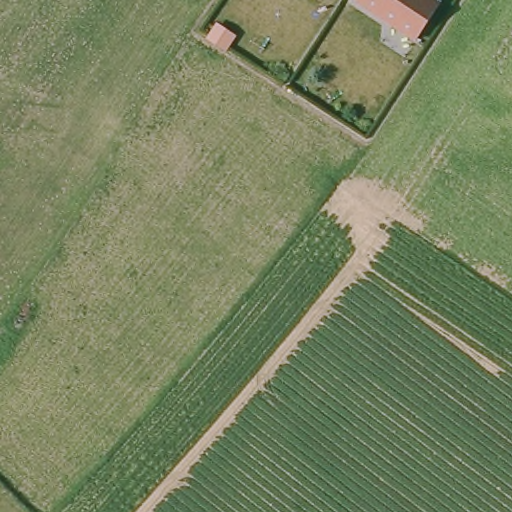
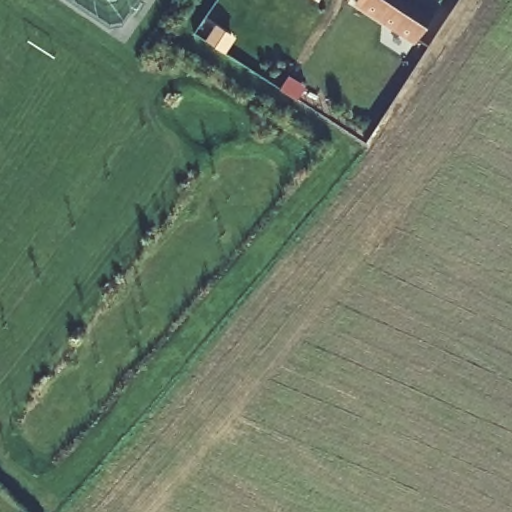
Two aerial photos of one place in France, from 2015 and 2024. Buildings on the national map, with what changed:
unchanged [(438,3),(415,39),(355,0),(433,0),(438,3)]

